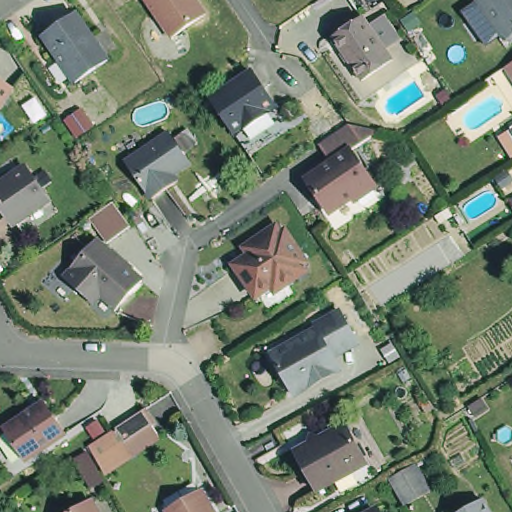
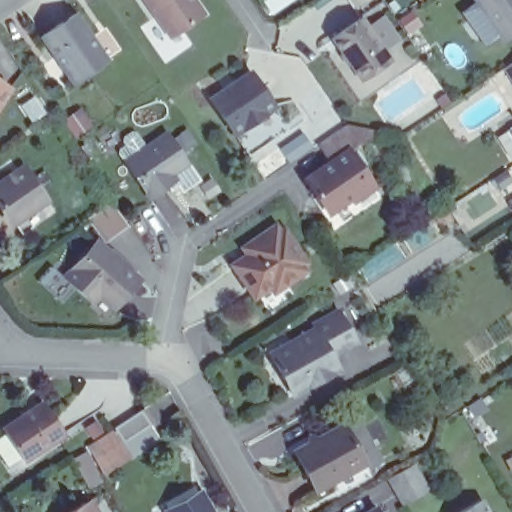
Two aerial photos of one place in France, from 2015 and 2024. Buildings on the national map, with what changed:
unchanged [(206,16),(170,40),(143,0),(195,0),(206,16)]
unchanged [(505,45),(473,0),(474,0),(512,0),(512,39),(505,45)]
unchanged [(110,58),(77,80),(47,34),(77,12),(110,58)]
unchanged [(390,62),(361,82),(332,40),(362,21),(390,62)]
unchanged [(509,107),(490,76),(512,62),(512,105),(509,107)]
unchanged [(249,148),(235,130),(234,131),(211,96),(251,69),(275,102),(265,109),(267,112),(262,115),(273,132),(249,148)]
unchanged [(0,111),(0,81),(14,91),(0,111)]
unchanged [(355,144),(355,143),(335,156),(323,138),(352,118),(385,124),(355,144)]
unchanged [(170,192),(151,206),(126,169),(169,140),(189,171),(174,182),(177,188),(170,192)]
unchanged [(377,177),(334,206),(322,189),(312,173),(335,156),(355,143),(355,144),(377,177)]
unchanged [(19,229),(10,217),(5,215),(0,207),(0,194),(29,175),(51,206),(60,219),(27,241),(19,229)]
unchanged [(334,206),(377,177),(387,191),(340,223),(319,192),(322,189),(334,206)]
unchanged [(119,198),(137,223),(112,240),(95,215),(119,198)]
unchanged [(285,284),(277,282),(254,296),(235,266),(256,252),(251,245),(276,229),(280,236),(284,234),(305,264),(301,266),(304,271),(285,284)]
unchanged [(119,255),(121,254),(131,262),(129,265),(147,279),(122,307),(107,294),(99,303),(70,277),(84,262),(80,258),(94,244),(98,247),(104,241),(119,255)]
unchanged [(309,319),(335,305),(347,330),(323,344),(334,362),(287,388),(268,355),(265,349),(287,337),(312,324),(309,319)]
unchanged [(64,432),(26,459),(4,427),(45,401),(64,432)]
unchanged [(164,439),(95,490),(73,458),(150,405),(164,439)]
unchanged [(318,441),(343,428),(364,465),(316,493),(297,460),(295,455),(308,448),(310,438),(318,441)]
unchanged [(427,485),(409,496),(398,478),(417,467),(427,485)]
unchanged [(216,512),(172,512),(205,492),(216,512)]
unchanged [(101,512),(70,512),(94,499),(101,512)]
unchanged [(486,512),(456,512),(480,499),(486,512)]
unchanged [(379,512),(359,512),(374,503),(379,512)]

